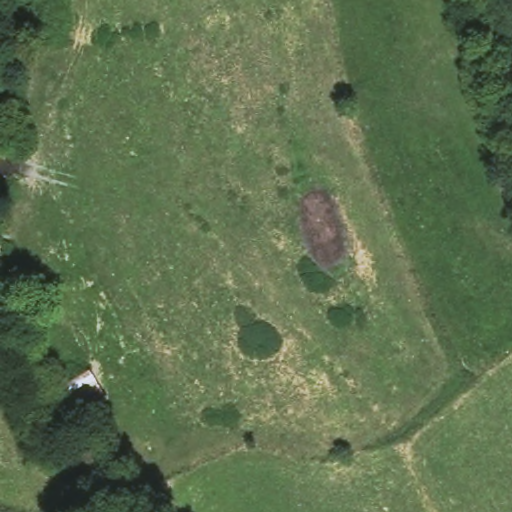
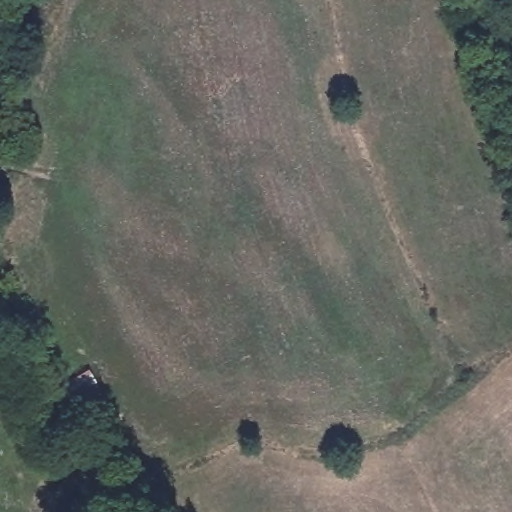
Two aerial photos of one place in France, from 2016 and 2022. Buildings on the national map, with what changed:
unchanged [(102,390),(82,400),(69,373),(89,362),(102,390)]

